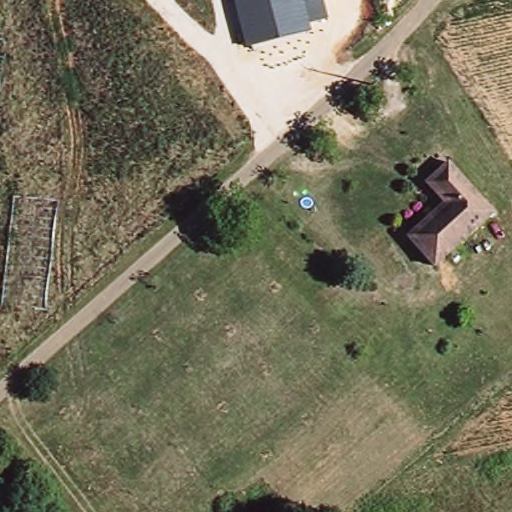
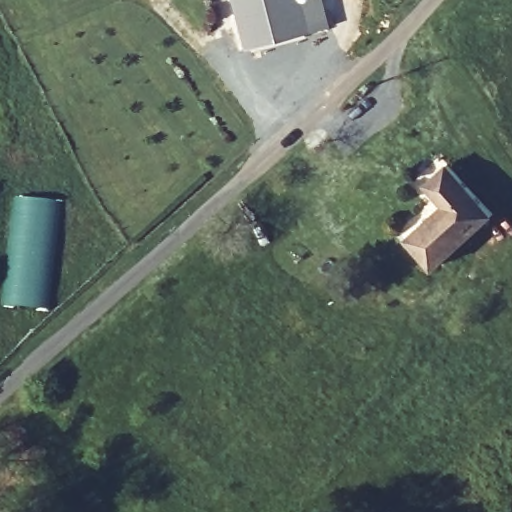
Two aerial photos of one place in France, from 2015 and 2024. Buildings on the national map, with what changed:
demolished [(0,96),(0,0),(11,0),(0,96)]
unchanged [(331,20),(311,25),(312,32),(246,48),(234,0),(326,0),(331,20)]
unchanged [(436,266),(406,230),(434,206),(413,182),(444,155),(496,215),(436,266)]
new [(49,202),(43,250),(48,250),(41,310),(6,306),(18,199),(49,202)]

